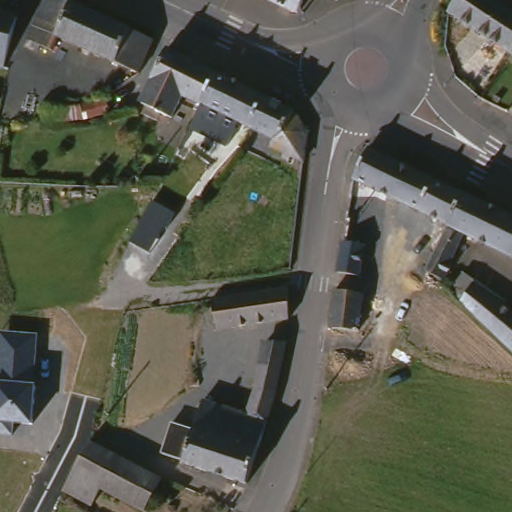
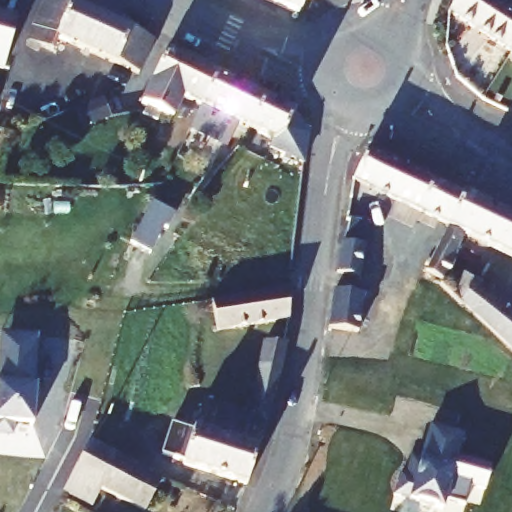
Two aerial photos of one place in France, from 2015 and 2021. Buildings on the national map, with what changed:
unchanged [(159,46),(144,80),(64,44),(57,57),(31,46),(52,0),(55,0),(159,46)]
unchanged [(327,2),(306,5),(299,21),(254,0),(328,0),(327,2)]
unchanged [(457,0),(485,0),(512,18),(512,48),(506,56),(447,15),(457,0)]
unchanged [(9,75),(0,72),(0,18),(23,24),(9,75)]
unchanged [(506,56),(512,48),(512,61),(506,56)]
unchanged [(221,81),(206,110),(187,101),(181,114),(186,116),(182,125),(166,117),(162,125),(148,119),(151,110),(146,109),(173,56),(221,81)]
unchanged [(272,106),(257,135),(215,115),(205,134),(197,130),(206,110),(221,81),(272,106)]
unchanged [(106,100),(109,115),(85,121),(43,125),(43,121),(41,110),(76,107),(81,107),(106,100)]
unchanged [(298,120),(312,140),(308,168),(296,162),(294,167),(288,165),(290,160),(276,154),(279,146),(257,135),(272,106),(298,120)]
unchanged [(6,131),(6,136),(1,137),(1,132),(6,131)]
unchanged [(369,149),(404,166),(390,200),(355,184),(369,149)]
unchanged [(404,166),(463,195),(448,227),(427,217),(390,200),(404,166)]
unchanged [(512,220),(512,260),(465,236),(450,275),(512,317),(512,361),(487,340),(461,319),(459,322),(452,317),(436,305),(442,296),(427,282),(426,280),(448,227),(463,195),(512,220)]
unchanged [(150,254),(130,244),(153,201),(176,215),(150,254)]
unchanged [(370,248),(365,282),(340,278),(343,256),(345,245),(370,248)]
unchanged [(190,250),(194,270),(183,273),(178,252),(190,250)]
unchanged [(361,360),(328,355),(337,297),(370,302),(361,360)]
unchanged [(291,300),(293,330),(222,342),(216,310),(291,300)]
unchanged [(34,425),(13,423),(11,438),(0,437),(0,334),(39,335),(36,385),(34,425)]
unchanged [(268,348),(291,349),(280,402),(259,397),(268,348)]
unchanged [(250,422),(259,397),(280,402),(272,428),(251,490),(187,470),(188,467),(167,460),(177,430),(198,437),(208,408),(250,422)]
new [(407,478),(410,465),(413,457),(422,460),(431,427),(464,436),(458,458),(492,468),(485,491),(471,487),(465,507),(443,501),(441,510),(395,497),(401,476),(407,478)]
unchanged [(144,512),(143,512),(100,490),(91,506),(64,492),(89,444),(161,481),(144,512)]

